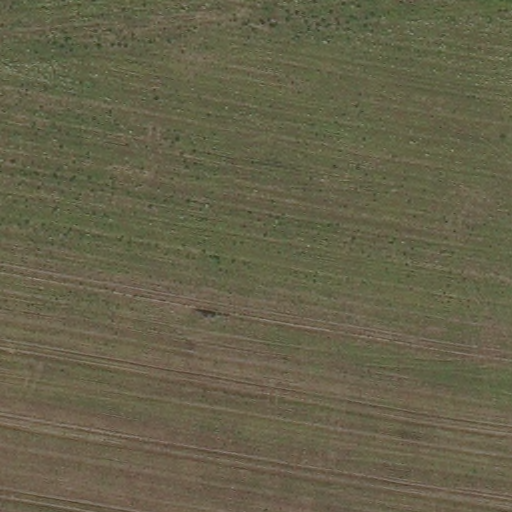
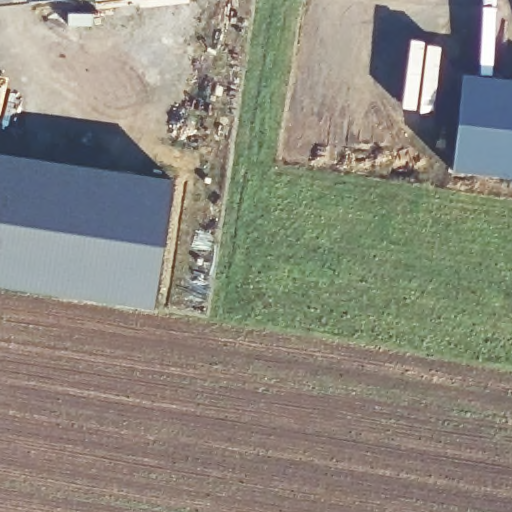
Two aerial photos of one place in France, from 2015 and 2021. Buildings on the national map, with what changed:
new [(512,74),(512,173),(449,166),(459,69),(512,74)]
new [(169,175),(151,304),(0,281),(0,149),(169,175)]

